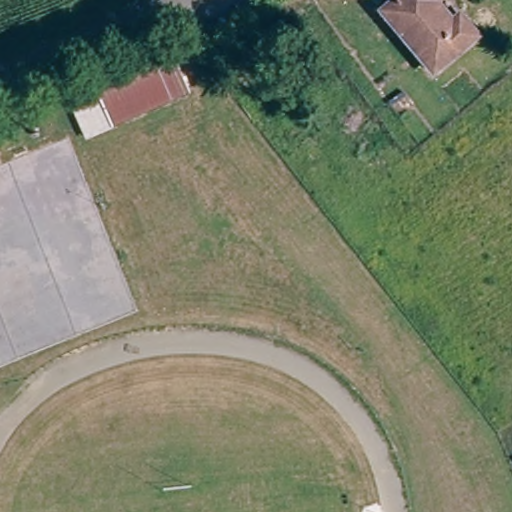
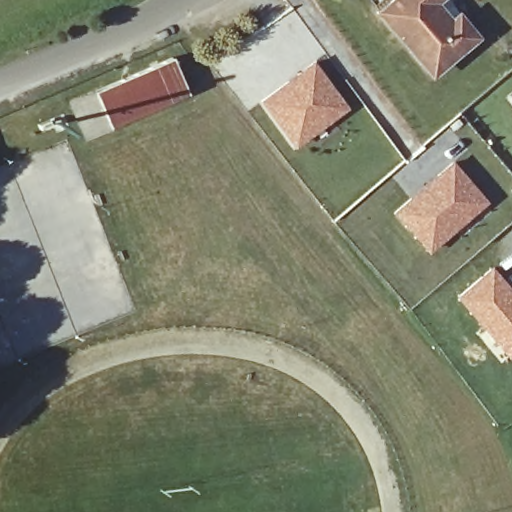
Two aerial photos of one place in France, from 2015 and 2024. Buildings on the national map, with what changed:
unchanged [(432,76),(378,15),(396,0),(433,0),(470,42),(432,76)]
unchanged [(171,61),(186,95),(109,129),(107,125),(80,136),(67,105),(171,61)]
new [(346,107),(332,117),(342,130),(320,146),(310,132),(294,145),(262,101),(313,63),(346,107)]
new [(512,97),(512,106),(507,101),(512,97)]
new [(489,203),(429,252),(393,211),(454,162),(489,203)]
new [(512,355),(501,362),(476,333),(484,326),(459,297),(493,270),(512,294),(512,355)]

